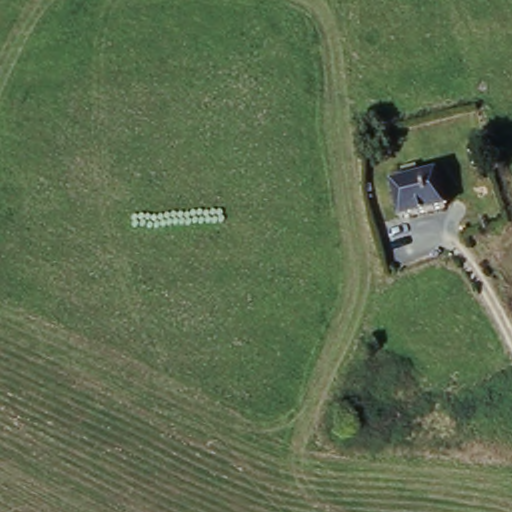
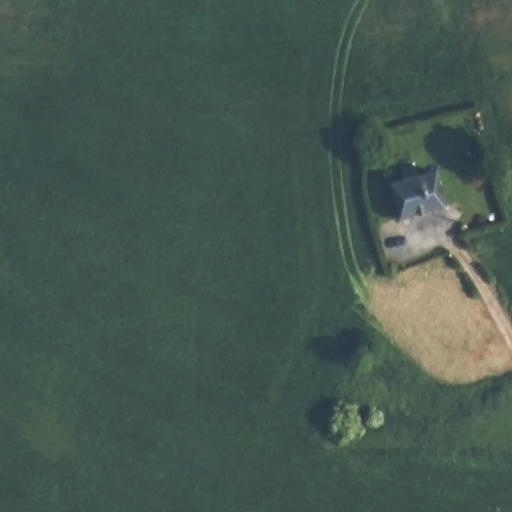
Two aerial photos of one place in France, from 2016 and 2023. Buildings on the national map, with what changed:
unchanged [(446,207),(400,218),(394,184),(437,174),(446,207)]

